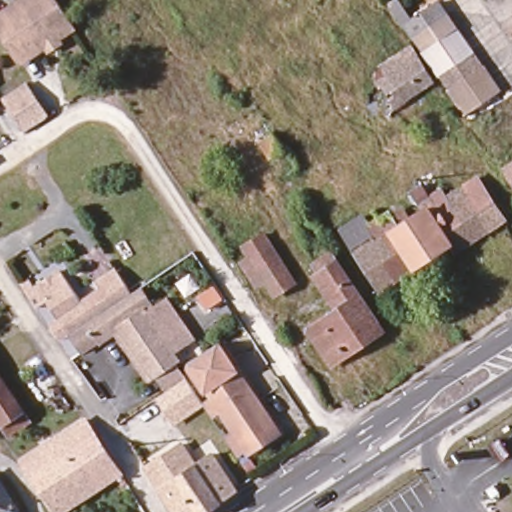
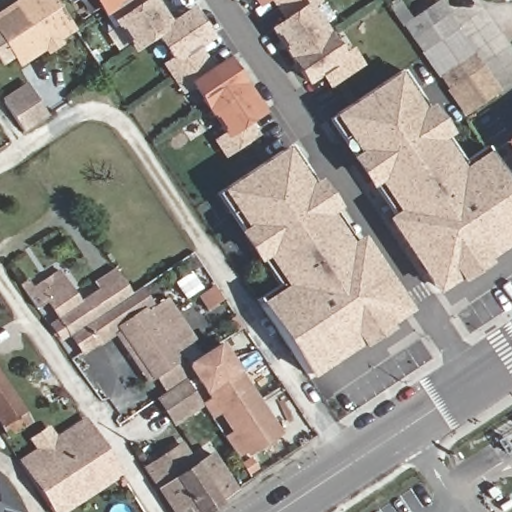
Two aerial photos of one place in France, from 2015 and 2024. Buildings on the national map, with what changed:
unchanged [(43,49),(20,65),(0,35),(0,15),(23,0),(57,0),(75,28),(60,38),(43,49)]
new [(194,6),(214,39),(204,45),(217,63),(227,56),(244,81),(266,112),(252,121),(260,134),(225,159),(215,141),(223,135),(205,109),(193,89),(182,95),(162,65),(171,60),(157,36),(132,53),(112,21),(116,19),(111,12),(104,18),(93,0),(156,0),(170,21),(194,6)]
new [(252,0),(269,0),(257,9),(252,0)]
new [(315,10),(331,33),(343,54),(353,45),(366,65),(331,88),(323,75),(307,86),(290,59),(270,28),(286,18),(275,0),(323,0),(323,1),(315,10)]
unchanged [(443,81),(406,25),(403,26),(390,6),(397,1),(411,21),(437,3),(449,21),(498,91),(462,116),(441,83),(443,81)]
demolished [(412,49),(432,81),(401,103),(386,80),(390,76),(384,67),(412,49)]
new [(385,220),(394,213),(375,185),(368,190),(348,158),(353,155),(328,120),(332,117),(397,74),(402,71),(426,106),(430,104),(450,134),(447,136),(463,161),(482,149),(486,153),(512,192),(512,244),(487,261),(488,264),(460,284),(457,280),(434,293),(385,220)]
unchanged [(24,133),(4,101),(26,86),(47,118),(24,133)]
new [(503,143),(512,136),(512,156),(503,143)]
new [(314,182),(319,178),(338,209),(334,212),(353,241),(361,236),(410,312),(389,327),(392,329),(362,349),(361,346),(310,378),(258,304),(256,299),(277,285),(262,260),(257,264),(237,233),(243,230),(217,194),(221,192),(286,149),(291,146),(314,182)]
demolished [(503,172),(512,166),(512,186),(503,172)]
demolished [(350,237),(372,222),(375,226),(383,220),(393,234),(397,232),(387,219),(394,215),(403,228),(423,214),(412,196),(425,188),(433,200),(446,192),(452,201),(482,180),(504,213),(453,247),(386,291),(350,237)]
demolished [(275,290),(266,276),(257,282),(241,259),(250,252),(244,243),(262,231),(293,278),(275,290)]
demolished [(343,308),(321,274),(315,265),(330,255),(382,334),(332,367),(308,331),(337,312),(343,308)]
unchanged [(97,318),(87,325),(96,339),(98,342),(91,347),(82,353),(67,332),(61,322),(47,301),(36,308),(35,307),(27,294),(21,285),(28,280),(34,289),(61,272),(81,302),(119,277),(131,294),(115,305),(97,318)]
unchanged [(152,308),(165,299),(192,338),(170,353),(176,362),(152,378),(120,330),(114,335),(100,344),(98,342),(96,339),(87,325),(97,318),(115,305),(131,294),(132,293),(139,289),(152,308)]
unchanged [(224,439),(233,433),(220,413),(211,419),(202,406),(212,400),(187,364),(219,344),(234,366),(258,403),(280,435),(249,455),(247,452),(237,458),(224,439)]
unchanged [(186,380),(202,405),(174,424),(157,399),(186,380)]
unchanged [(0,384),(25,419),(6,433),(0,425),(0,384)]
unchanged [(50,506),(22,462),(84,422),(85,421),(105,452),(114,465),(60,500),(65,509),(60,512),(52,512),(48,507),(50,506)]
unchanged [(181,446),(194,466),(211,455),(234,491),(235,491),(202,512),(173,512),(158,490),(146,470),(181,446)]
unchanged [(0,487),(17,512),(0,512),(0,487)]

